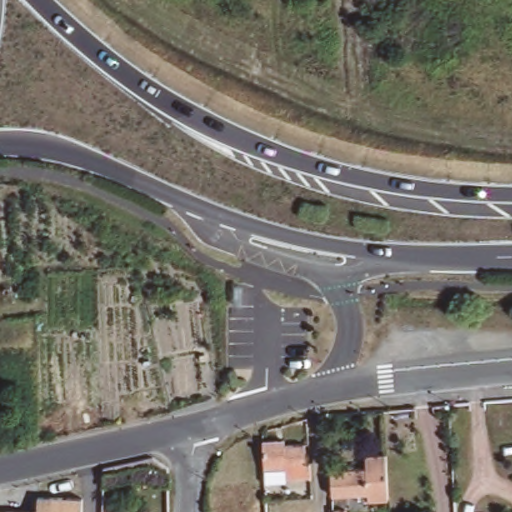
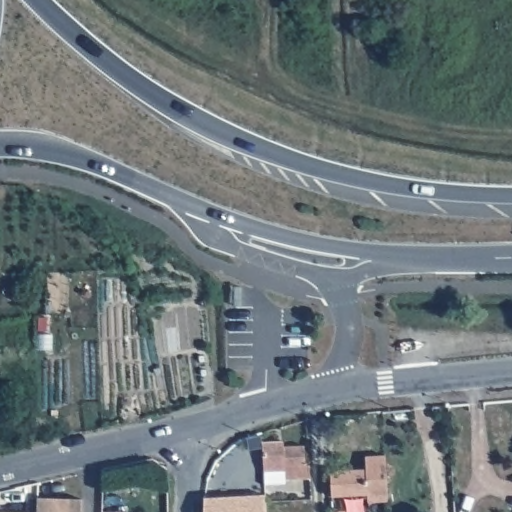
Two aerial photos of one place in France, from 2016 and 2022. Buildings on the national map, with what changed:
unchanged [(282,480),(260,480),(259,440),(281,438),(281,441),(300,441),(301,461),(305,461),(305,475),(290,475),(282,475),(282,480)]
unchanged [(388,503),(368,505),(367,497),(332,500),(330,474),(366,472),(365,460),(385,458),(388,503)]
new [(205,498),(265,496),(266,512),(204,512),(204,508),(205,498)]
unchanged [(83,512),(38,512),(38,501),(37,498),(82,498),(83,512)]

